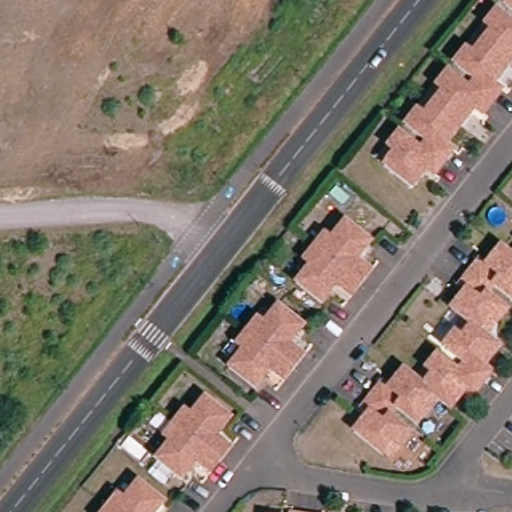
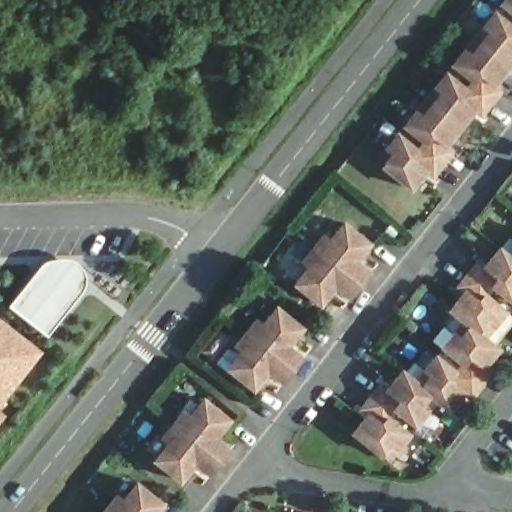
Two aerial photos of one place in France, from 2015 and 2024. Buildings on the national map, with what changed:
unchanged [(500,2),(502,0),(512,0),(512,12),(500,2)]
unchanged [(493,82),(500,87),(480,112),(473,107),(445,142),(452,148),(432,173),(425,167),(411,185),(383,162),(393,151),(386,145),(397,131),(417,147),(424,139),(404,123),(415,109),(422,114),(441,90),(434,85),(445,71),(465,87),(472,78),(452,63),(463,48),(469,54),(489,30),(482,25),(493,11),(512,26),(512,59),(493,82)]
unchanged [(307,264),(327,238),(333,243),(347,226),(372,247),(358,265),(372,276),(353,300),(338,289),(324,307),(298,286),(313,268),(307,264)]
unchanged [(499,274),(493,282),(512,298),(512,299),(501,312),(494,307),(485,318),(481,315),(457,296),(471,278),(464,273),(485,248),(492,253),(506,236),(512,241),(512,284),(499,274)]
new [(11,308),(45,264),(53,259),(73,259),(81,263),(87,274),(88,285),(82,294),(50,335),(11,308)]
unchanged [(310,330),(296,348),(310,359),(291,384),(277,372),(263,390),(237,370),(251,352),(245,347),(265,322),(272,326),(284,309),(310,330)]
unchanged [(485,318),(509,338),(495,355),(502,361),(482,386),(476,380),(462,398),(437,379),(433,376),(443,364),(436,359),(447,345),(467,360),(474,352),(454,336),(465,322),(472,327),(481,315),(485,318)]
new [(0,406),(0,316),(41,350),(0,406)]
unchanged [(437,379),(428,391),(434,396),(424,410),(404,394),(397,403),(417,419),(406,433),(399,427),(389,439),(361,417),(375,399),(369,394),(388,369),(395,374),(409,356),(433,376),(437,379)]
unchanged [(168,442),(189,417),(194,422),(208,405),(233,425),(219,443),(234,455),(214,479),(199,467),(185,485),(159,465),(174,447),(168,442)]
new [(0,421),(0,408),(6,413),(0,421)]
unchanged [(164,512),(112,512),(123,499),(129,504),(142,487),(168,508),(164,512)]

